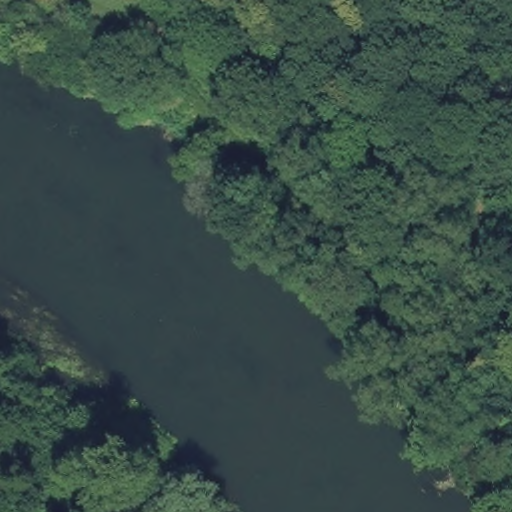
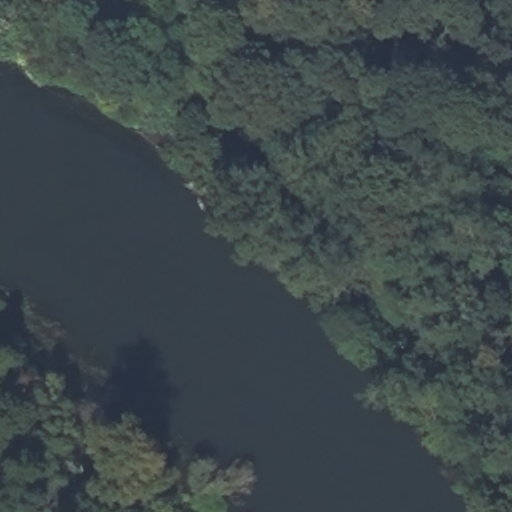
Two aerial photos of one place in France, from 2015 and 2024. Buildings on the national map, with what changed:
unchanged [(506,267),(459,266),(458,198),(508,195),(506,267)]

